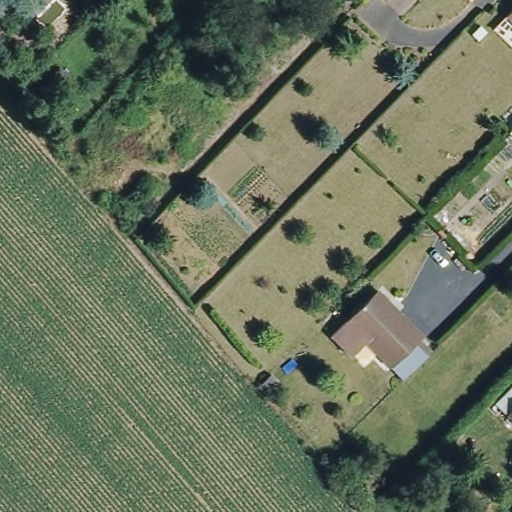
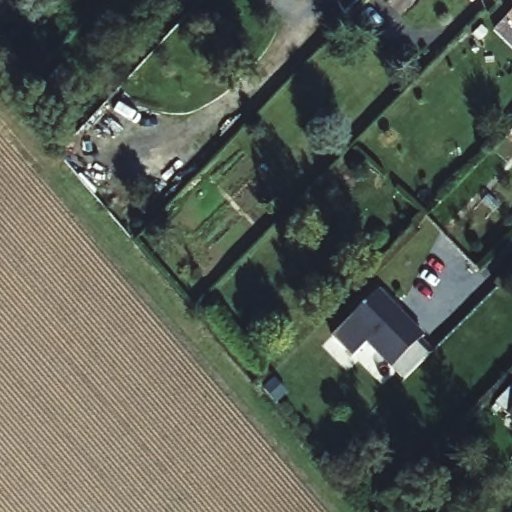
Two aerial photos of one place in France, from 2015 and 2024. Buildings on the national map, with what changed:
unchanged [(507,25),(506,24),(512,18),(512,29),(507,25)]
unchanged [(406,383),(392,370),(387,375),(342,328),(375,295),(421,342),(416,346),(430,360),(406,383)]
unchanged [(507,416),(512,410),(512,421),(507,416)]

